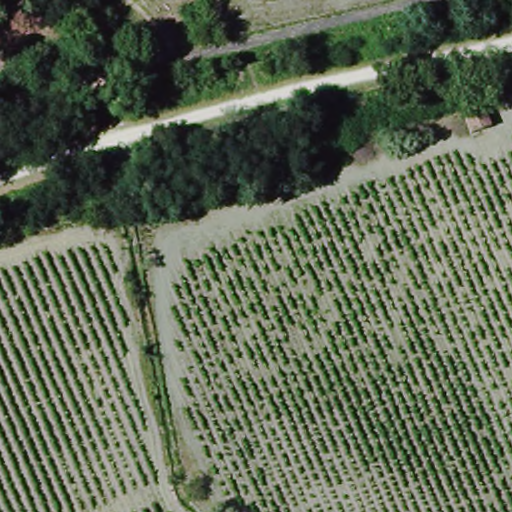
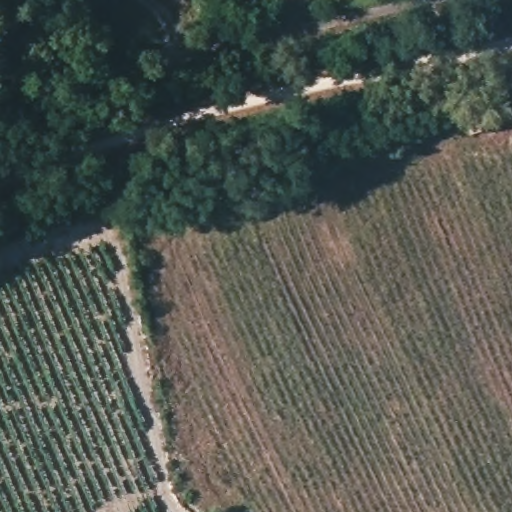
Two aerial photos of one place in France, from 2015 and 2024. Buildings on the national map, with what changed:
unchanged [(470,140),(463,117),(482,110),(490,131),(470,140)]

